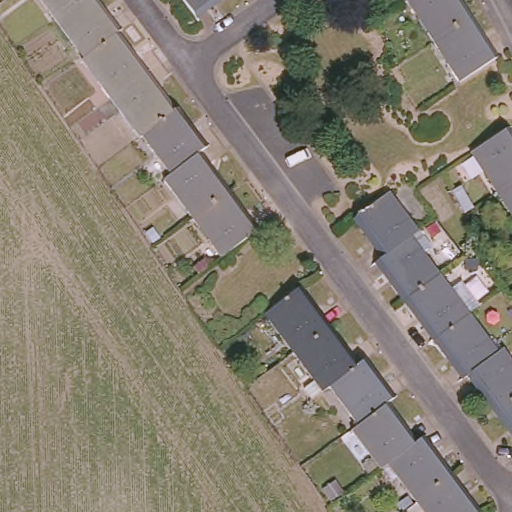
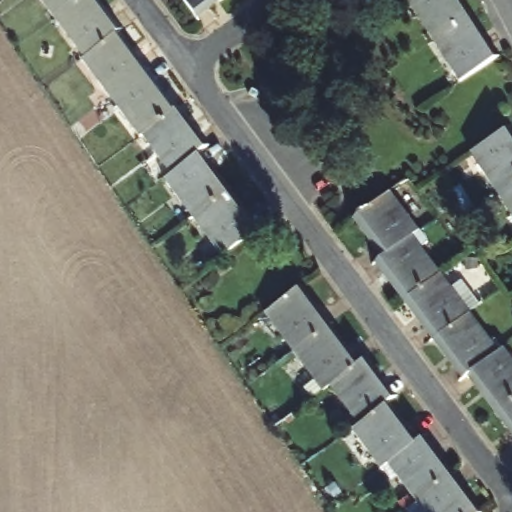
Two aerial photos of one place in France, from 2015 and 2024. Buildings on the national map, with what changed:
unchanged [(100,9),(117,32),(128,46),(125,49),(143,71),(160,93),(162,92),(174,108),(177,106),(189,122),(186,124),(203,147),(195,153),(212,174),(215,173),(227,190),(239,205),(236,208),(254,231),(221,254),(192,216),(164,177),(170,172),(140,132),(138,134),(109,96),(81,58),(84,56),(55,18),(42,0),(97,0),(102,7),(100,9)]
unchanged [(216,0),(193,17),(180,0),(221,0),(217,2),(216,0)]
unchanged [(407,1),(405,2),(403,0),(456,0),(457,1),(459,0),(461,0),(471,15),(482,32),(479,34),(495,57),(475,70),(460,80),(433,40),(407,1)]
unchanged [(470,151),(505,128),(512,139),(512,214),(497,192),(470,151)]
unchanged [(512,362),(512,432),(510,433),(497,416),(486,400),(489,398),(471,375),(467,378),(450,356),(447,358),(435,340),(437,338),(421,317),(417,318),(405,302),(395,286),(397,285),(380,261),(386,257),(370,236),(365,237),(355,222),(390,196),(419,233),(414,237),(442,275),(462,301),(472,293),(482,305),(470,314),(500,353),(504,351),(512,362)]
unchanged [(416,500),(395,472),(390,474),(383,465),(380,468),(352,429),(357,424),(329,385),(323,389),(294,350),(265,311),(270,308),(300,286),(311,302),(309,304),(325,327),(328,325),(340,341),(338,343),(355,365),(364,358),(375,373),(374,376),(390,399),(387,402),(400,420),(398,422),(414,442),(420,437),(435,459),(439,458),(450,474),(449,476),(465,498),(467,497),(479,512),(425,512),(416,500)]

